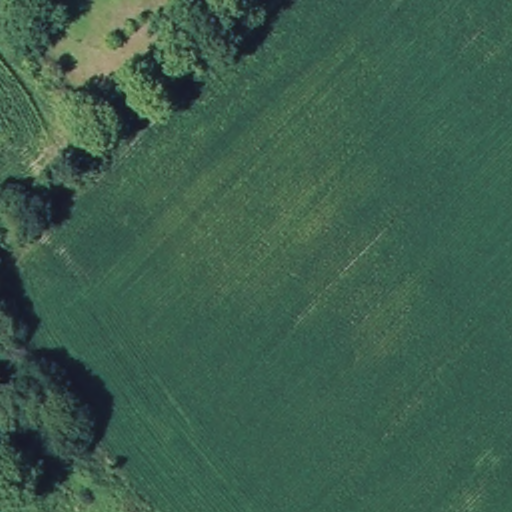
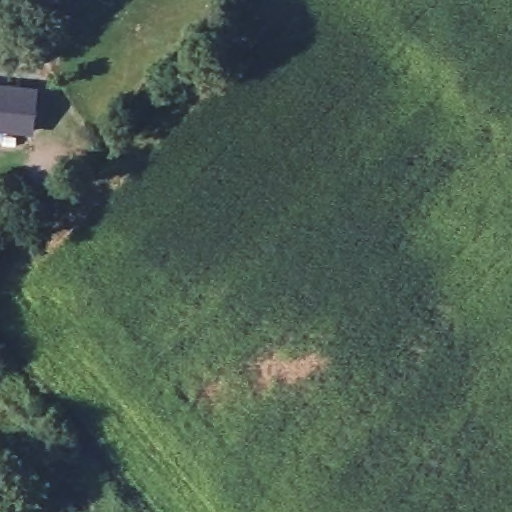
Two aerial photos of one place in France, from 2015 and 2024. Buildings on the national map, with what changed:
new [(34,89),(29,130),(0,126),(0,84),(34,89)]

